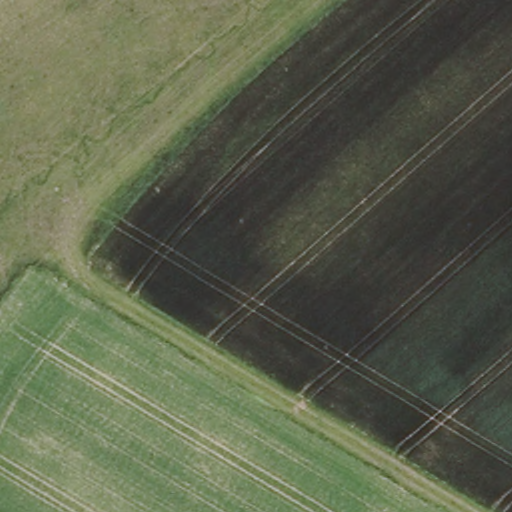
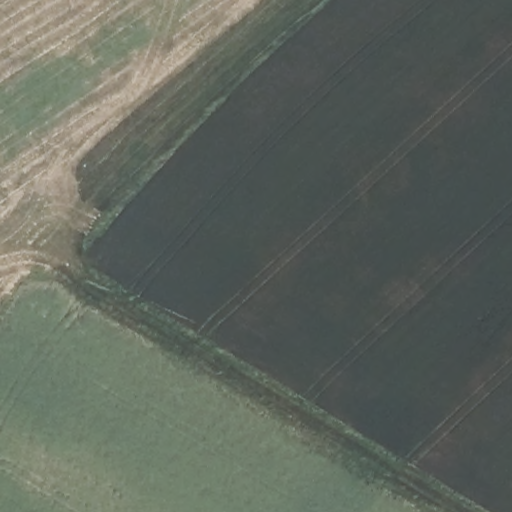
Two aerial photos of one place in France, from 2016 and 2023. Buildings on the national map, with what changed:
[]

